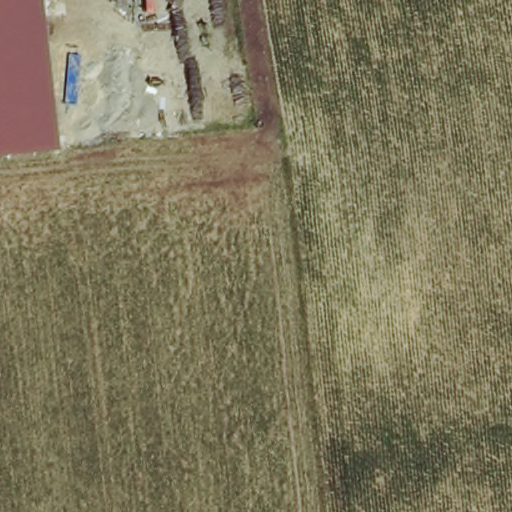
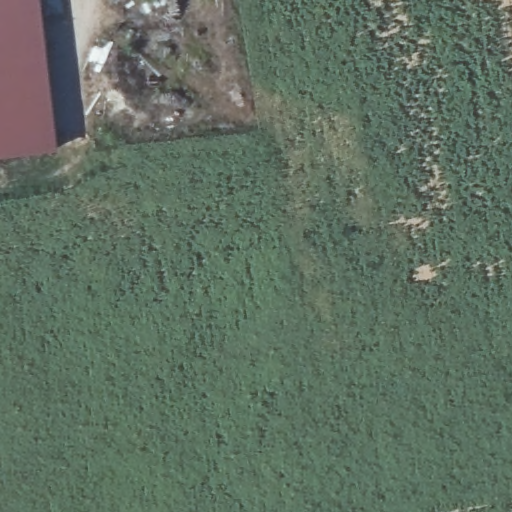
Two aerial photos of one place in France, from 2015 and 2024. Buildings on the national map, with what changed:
unchanged [(0,0),(40,0),(56,151),(0,156),(0,0)]

